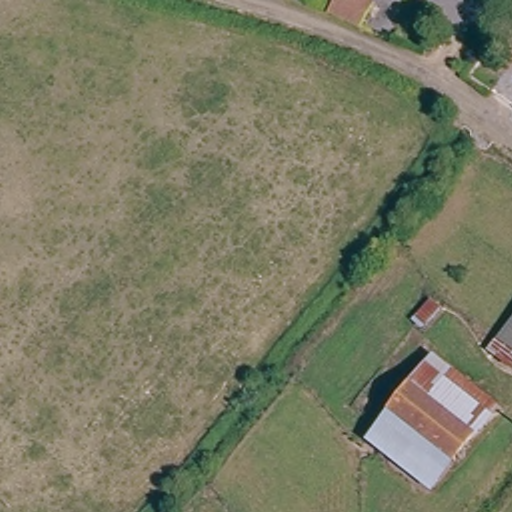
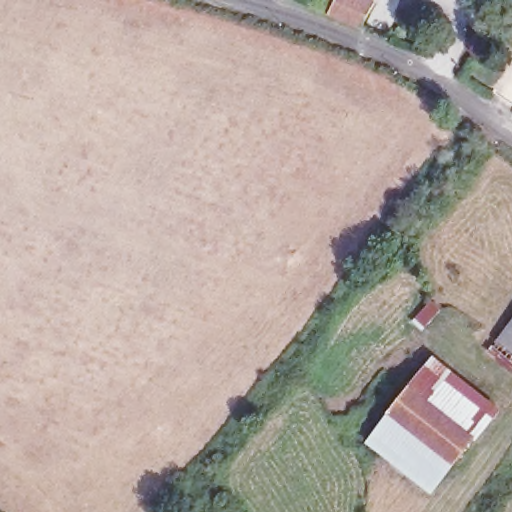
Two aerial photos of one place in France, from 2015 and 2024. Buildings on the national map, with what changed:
unchanged [(372,0),(378,3),(365,29),(328,9),(333,0),(372,0)]
unchanged [(512,340),(507,336),(512,330),(512,340)]
unchanged [(418,388),(440,360),(503,408),(481,436),(418,388)]
unchanged [(481,436),(462,460),(400,412),(418,388),(481,436)]
unchanged [(462,460),(442,485),(380,439),(400,412),(462,460)]

